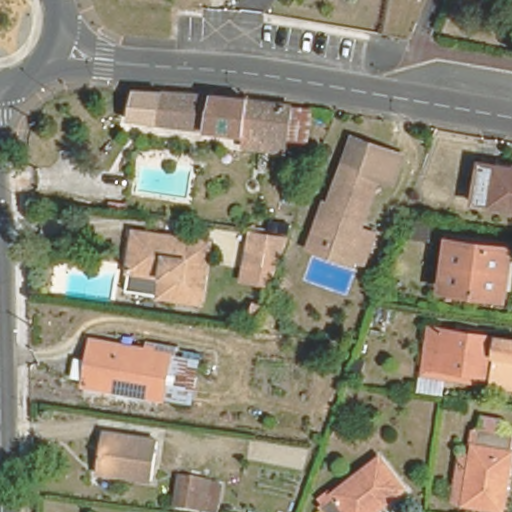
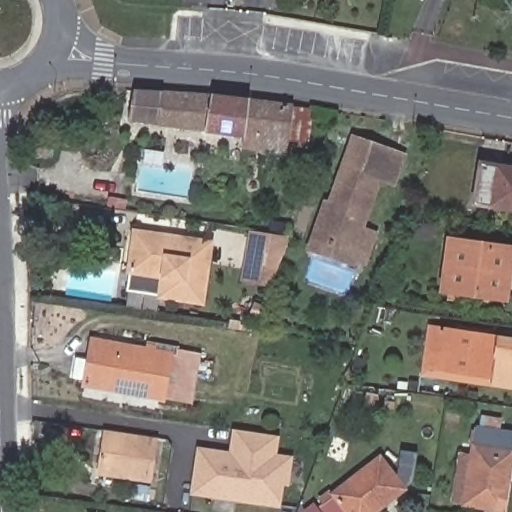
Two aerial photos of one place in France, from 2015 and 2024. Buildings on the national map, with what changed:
unchanged [(241,148),(243,136),(125,120),(130,88),(250,100),(288,104),(311,108),(307,142),(286,140),(285,153),(241,148)]
unchanged [(340,161),(351,132),(406,152),(395,180),(376,174),(340,161)]
unchanged [(305,244),(308,232),(321,199),(325,201),(340,161),(376,174),(358,225),(371,230),(360,259),(349,255),(347,259),(305,244)]
unchanged [(512,208),(474,203),(480,163),(512,167),(512,208)]
unchanged [(210,233),(201,292),(155,286),(159,266),(129,262),(135,222),(210,233)]
unchanged [(287,242),(280,263),(244,257),(246,236),(287,242)]
unchanged [(509,248),(502,296),(441,289),(448,240),(509,248)]
unchanged [(430,327),(498,337),(512,339),(512,386),(491,383),(423,372),(425,365),(430,327)]
unchanged [(84,338),(201,359),(195,402),(76,381),(84,338)]
unchanged [(478,443),(473,442),(475,427),(481,428),(483,414),(505,417),(502,431),(512,433),(512,470),(505,510),(468,504),(455,502),(463,451),(477,453),(478,443)]
new [(230,453),(234,429),(279,436),(276,454),(291,457),(287,481),(282,481),(278,504),(192,491),(199,448),(230,453)]
unchanged [(156,438),(150,479),(150,484),(119,479),(120,476),(97,472),(102,430),(156,438)]
unchanged [(377,512),(318,512),(333,500),(331,498),(378,461),(402,492),(377,512)]
demolished [(206,479),(202,509),(201,509),(176,506),(180,475),(206,479)]

